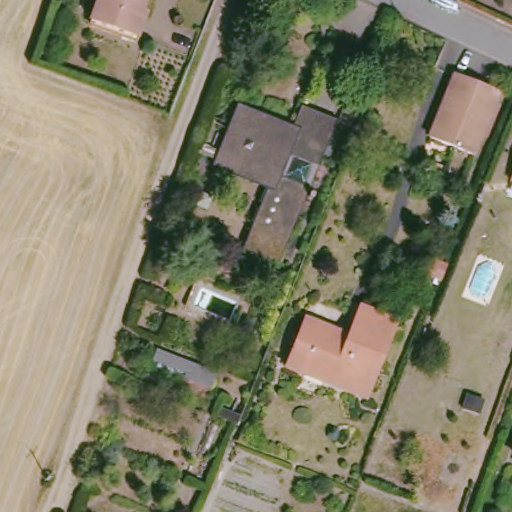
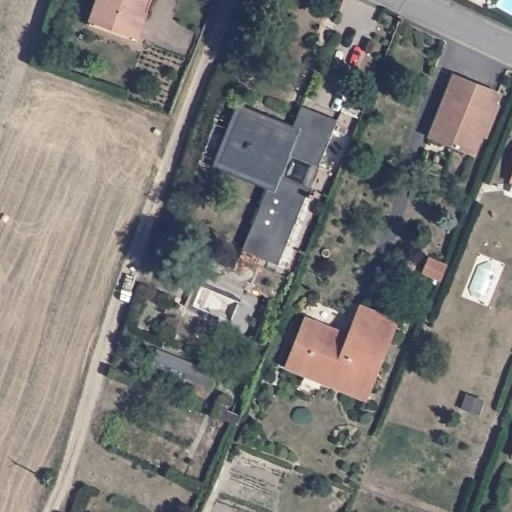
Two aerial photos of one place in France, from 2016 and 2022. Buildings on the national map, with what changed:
unchanged [(99,0),(152,0),(139,38),(92,21),(99,0)]
unchanged [(430,137),(455,75),(499,93),(474,154),(430,137)]
unchanged [(238,249),(268,182),(236,170),(234,173),(211,164),(218,146),(222,148),(236,110),(274,126),(271,135),(283,140),(298,105),(334,120),(315,166),(286,154),(277,177),(306,189),(276,265),(238,249)]
unchanged [(512,178),(512,181),(511,180),(512,178)]
unchanged [(306,374),(289,366),(308,319),(350,337),(363,307),(398,321),(369,391),(367,397),(306,374)]
unchanged [(181,389),(186,379),(151,363),(158,347),(192,363),(191,366),(218,377),(208,401),(181,389)]

